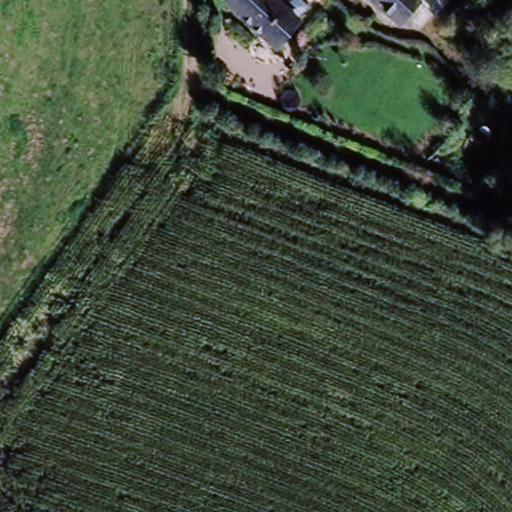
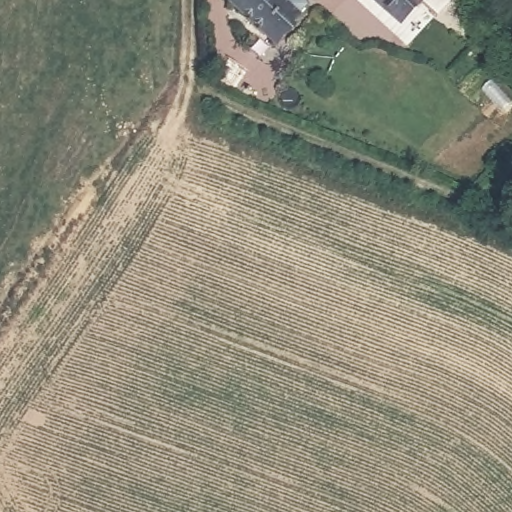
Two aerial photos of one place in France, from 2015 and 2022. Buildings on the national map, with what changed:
unchanged [(288,0),(306,18),(275,50),(223,0),(288,0)]
unchanged [(396,26),(366,0),(419,0),(407,14),(396,26)]

